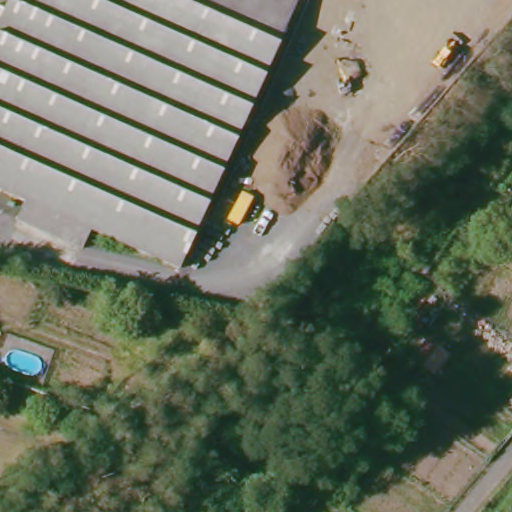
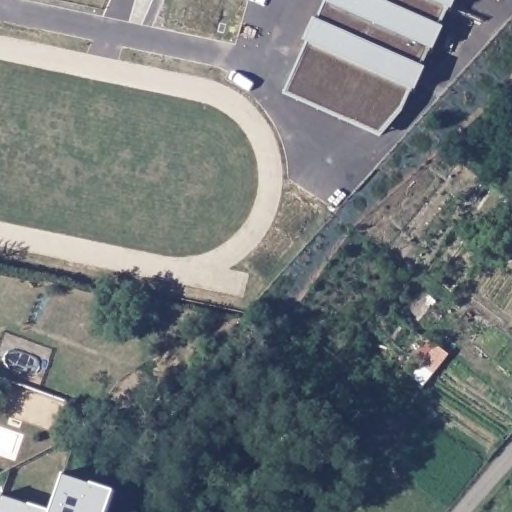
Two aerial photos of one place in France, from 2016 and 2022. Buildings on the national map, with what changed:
demolished [(0,13),(6,0),(292,0),(173,268),(88,229),(23,199),(0,189),(0,13)]
new [(309,41),(306,41),(316,19),(319,19),(328,1),(324,0),(460,0),(455,10),(451,9),(443,26),(447,29),(438,51),(433,49),(424,67),(429,69),(419,90),(414,88),(409,110),(384,138),(286,94),(309,41)]
new [(502,0),(505,0),(504,1),(502,0)]
new [(0,503),(3,494),(51,510),(64,474),(116,490),(109,512),(0,512),(0,503)]

